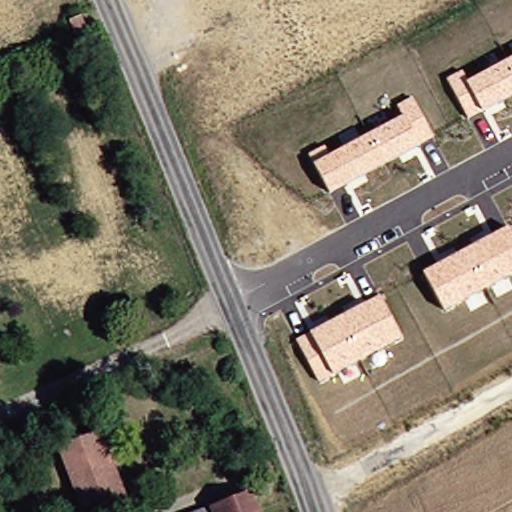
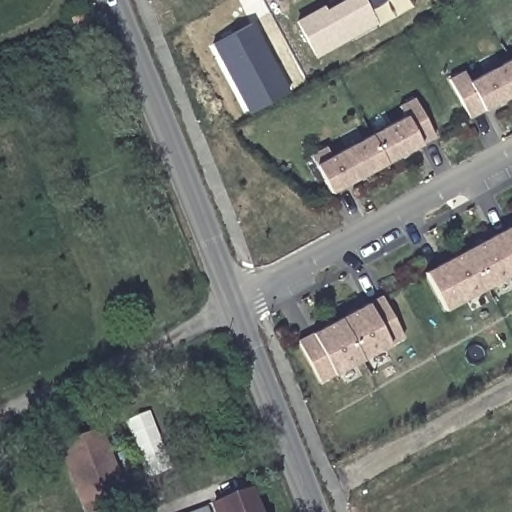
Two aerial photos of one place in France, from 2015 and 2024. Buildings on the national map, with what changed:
new [(328,11),(352,0),(365,0),(378,24),(320,54),(302,21),(327,7),(328,11)]
new [(365,0),(381,0),(369,6),(365,0)]
new [(287,93),(249,114),(212,44),(252,23),(287,93)]
unchanged [(90,46),(79,50),(72,31),(83,28),(90,46)]
unchanged [(482,109),(468,116),(447,79),(463,70),(468,79),(512,56),(512,93),(482,109)]
unchanged [(421,144),(329,194),(312,162),(309,156),(326,147),(329,154),(403,115),(398,106),(413,98),(434,136),(421,144)]
unchanged [(443,310),(424,272),(507,225),(512,233),(512,273),(443,310)]
unchanged [(389,344),(332,373),(320,383),(297,341),(311,331),(367,302),(381,295),(401,338),(389,344)]
new [(128,418),(152,409),(172,466),(149,474),(128,418)]
unchanged [(130,499),(95,512),(82,512),(60,453),(105,436),(130,499)]
unchanged [(215,505),(223,504),(252,490),(263,512),(218,512),(215,505)]
unchanged [(209,509),(210,512),(200,512),(209,509)]

